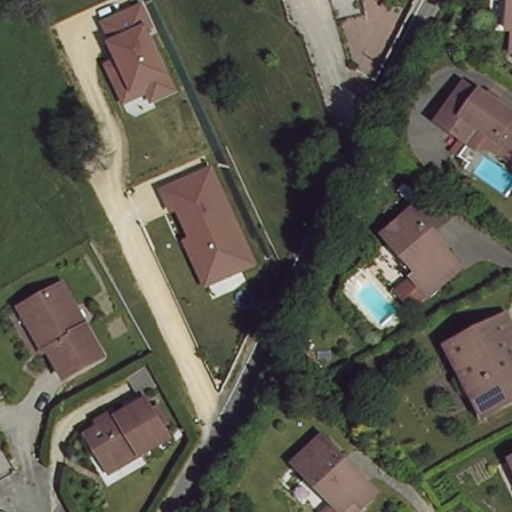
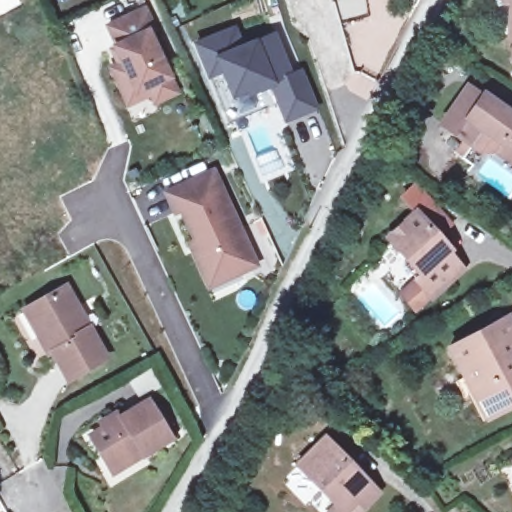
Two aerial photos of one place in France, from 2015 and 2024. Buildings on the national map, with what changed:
new [(0,0),(21,0),(22,4),(0,15),(0,0)]
unchanged [(508,7),(503,0),(512,0),(512,5),(508,7)]
unchanged [(157,32),(152,36),(171,77),(180,96),(156,106),(151,99),(128,106),(107,66),(119,62),(112,46),(104,25),(144,9),(157,32)]
new [(232,26),(240,45),(272,31),(289,71),(301,66),(316,104),(283,117),(267,77),(230,93),(220,68),(207,73),(194,41),(232,26)]
unchanged [(501,142),(481,130),(470,145),(437,125),(462,86),(480,96),(482,94),(512,113),(512,149),(501,142)]
unchanged [(260,269),(211,290),(185,245),(191,236),(179,216),(173,217),(163,195),(215,168),(260,269)]
unchanged [(394,293),(411,280),(416,275),(382,238),(414,209),(447,248),(446,250),(460,263),(425,293),(407,307),(394,293)]
unchanged [(74,302),(68,305),(80,325),(85,322),(105,355),(66,377),(49,348),(44,350),(30,327),(20,307),(26,303),(62,282),(74,302)]
unchanged [(455,366),(443,346),(507,311),(512,320),(512,330),(508,332),(512,339),(512,404),(483,419),(455,366)]
unchanged [(102,460),(83,429),(142,395),(163,434),(136,450),(107,467),(102,460)]
unchanged [(358,500),(358,505),(352,512),(324,512),(331,503),(291,463),(321,434),(372,486),(358,500)]
unchanged [(511,456),(512,455),(512,458),(511,456)]

